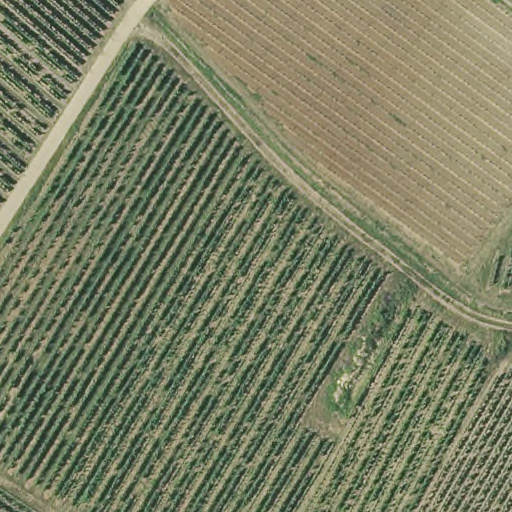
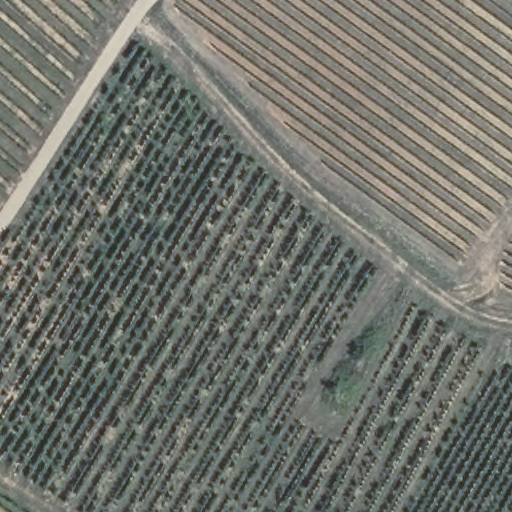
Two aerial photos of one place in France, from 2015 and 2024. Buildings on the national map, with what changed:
[]

